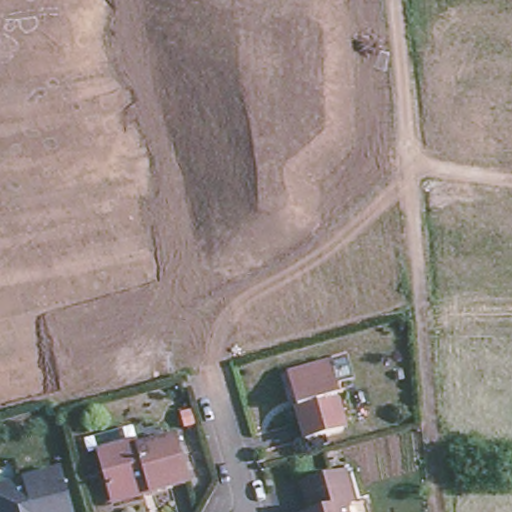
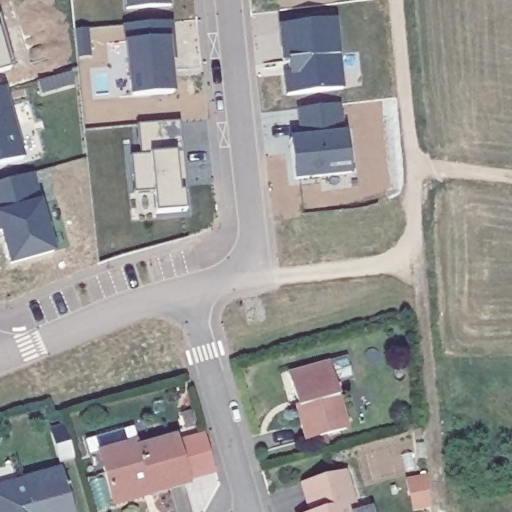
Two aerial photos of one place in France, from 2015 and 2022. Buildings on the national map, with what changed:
new [(128,6),(127,0),(172,0),(172,4),(128,6)]
new [(2,13),(15,61),(0,66),(0,13),(2,13)]
new [(344,86),(284,95),(282,72),(295,70),(294,57),(280,59),(277,24),(336,16),(344,86)]
new [(122,41),(170,36),(175,38),(177,58),(173,56),(177,92),(130,96),(122,41)]
new [(4,85),(24,156),(0,163),(0,87),(4,85)]
new [(304,133),(300,103),(340,99),(343,129),(348,129),(352,168),(295,174),(291,134),(304,133)]
new [(185,188),(187,208),(156,211),(154,189),(134,191),(130,153),(140,152),(137,122),(181,117),(186,168),(189,188),(185,188)]
new [(36,171),(59,249),(12,260),(3,228),(0,229),(0,181),(36,171)]
unchanged [(292,409),(295,409),(286,377),(325,365),(343,430),(302,442),(292,409)]
unchanged [(108,500),(102,477),(95,456),(134,445),(135,449),(172,439),(185,486),(147,496),(110,507),(108,500)]
unchanged [(63,467),(75,510),(74,512),(0,512),(0,484),(63,467)]
unchanged [(304,488),(347,474),(356,505),(348,508),(349,512),(311,512),(304,488)]

